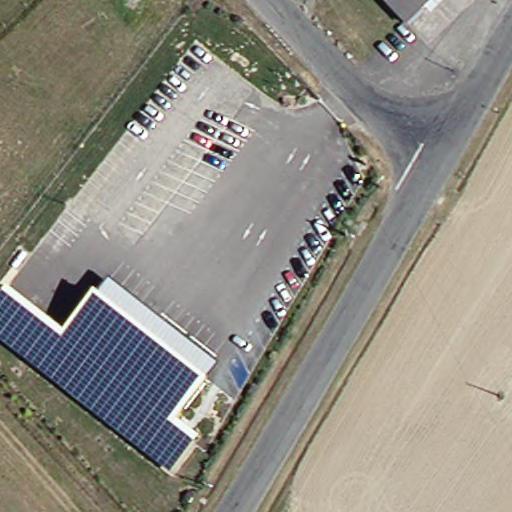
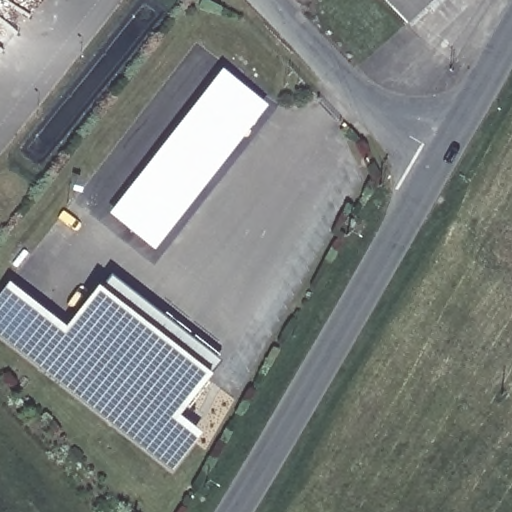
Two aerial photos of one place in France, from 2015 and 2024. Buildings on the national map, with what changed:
unchanged [(424,11),(409,26),(385,0),(415,0),(424,11)]
unchanged [(424,11),(415,0),(436,0),(424,11)]
new [(152,253),(106,216),(220,70),(266,108),(152,253)]
new [(112,310),(93,295),(108,277),(219,363),(203,382),(112,310)]
unchanged [(167,428),(188,443),(168,472),(6,344),(0,339),(0,288),(20,303),(58,332),(89,292),(203,382),(167,428)]

